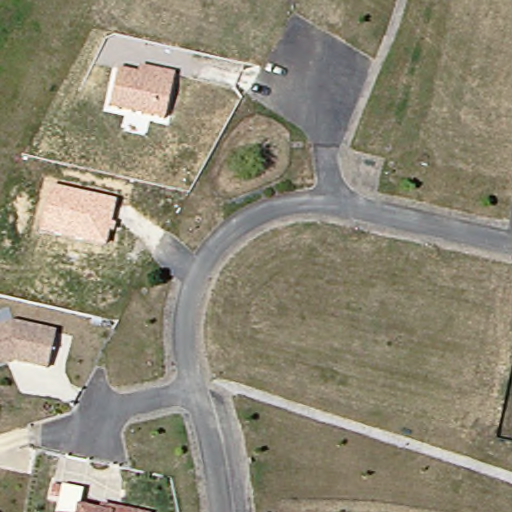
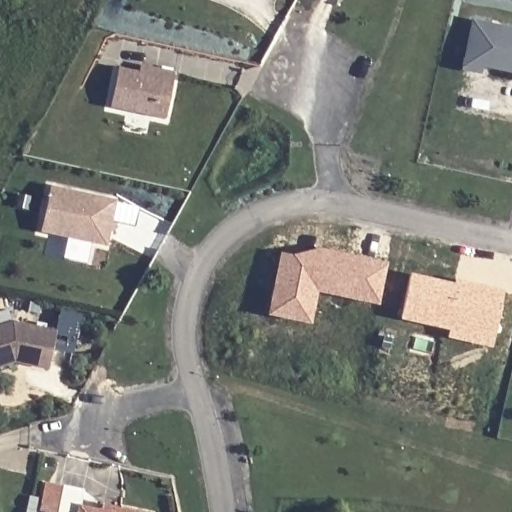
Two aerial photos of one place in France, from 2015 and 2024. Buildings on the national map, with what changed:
new [(512,32),(512,75),(484,70),(482,76),(463,71),(473,24),(512,32)]
unchanged [(154,76),(155,69),(175,74),(164,120),(109,107),(117,69),(154,76)]
unchanged [(107,249),(39,234),(48,187),(116,201),(107,249)]
new [(380,306),(320,293),(311,327),(267,316),(281,252),(291,256),(320,246),(388,262),(380,306)]
new [(492,347),(447,336),(447,330),(400,320),(411,272),(455,283),(457,276),(505,288),(492,347)]
unchanged [(58,327),(52,365),(18,360),(0,366),(0,325),(13,320),(58,327)]
unchanged [(81,495),(77,511),(79,512),(57,512),(63,490),(81,495)]
unchanged [(104,512),(100,512),(100,511),(104,512)]

